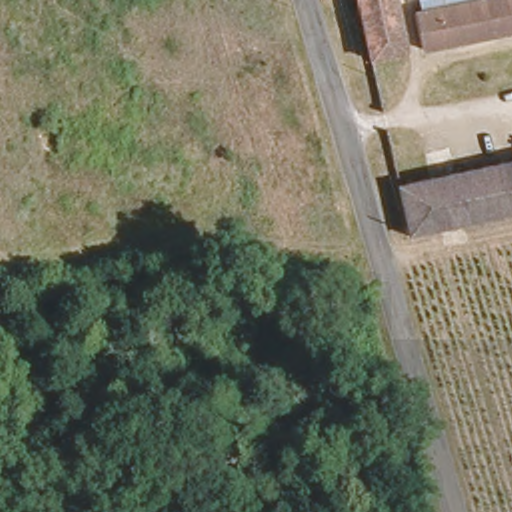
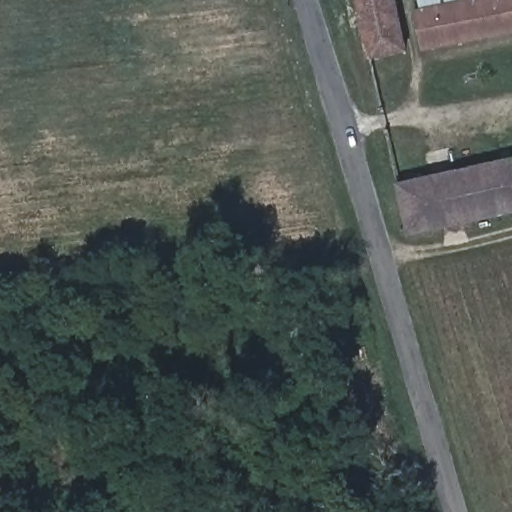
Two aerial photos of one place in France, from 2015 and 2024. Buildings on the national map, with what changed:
unchanged [(410,53),(375,60),(360,0),(398,0),(410,53)]
unchanged [(424,49),(417,13),(483,0),(512,0),(512,31),(424,49)]
unchanged [(404,235),(391,186),(512,160),(512,213),(404,235)]

